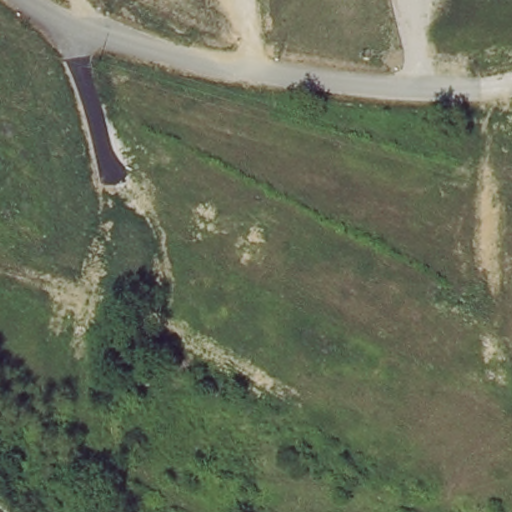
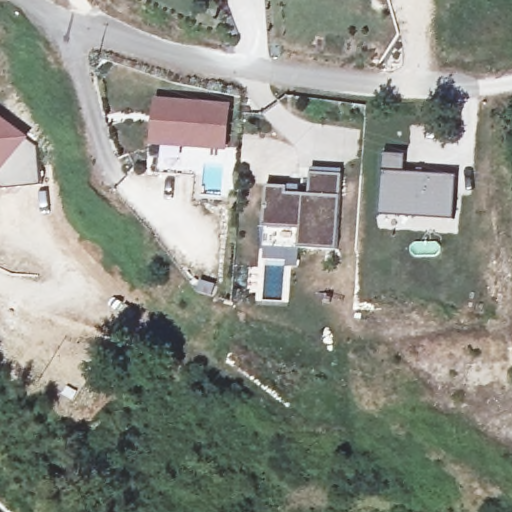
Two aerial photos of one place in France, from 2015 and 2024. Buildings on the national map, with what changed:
new [(155,97),(231,103),(226,149),(153,144),(155,97)]
new [(41,185),(3,189),(0,187),(0,117),(29,139),(28,142),(38,147),(41,185)]
new [(406,154),(404,171),(457,175),(453,218),(380,214),(383,170),(383,152),(406,154)]
new [(265,225),(268,185),(287,185),(287,192),(310,194),(311,172),(341,174),(337,247),(300,246),(266,244),(265,225)]

